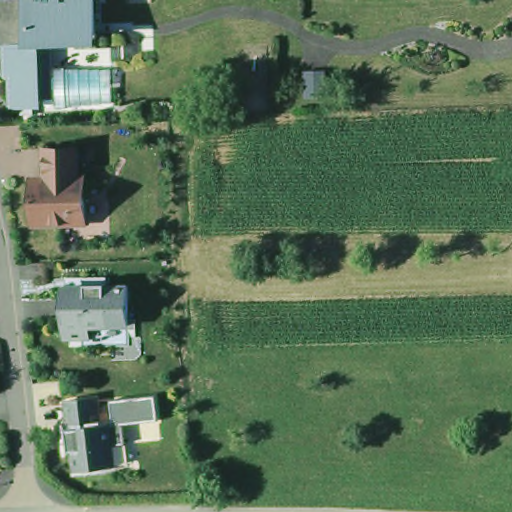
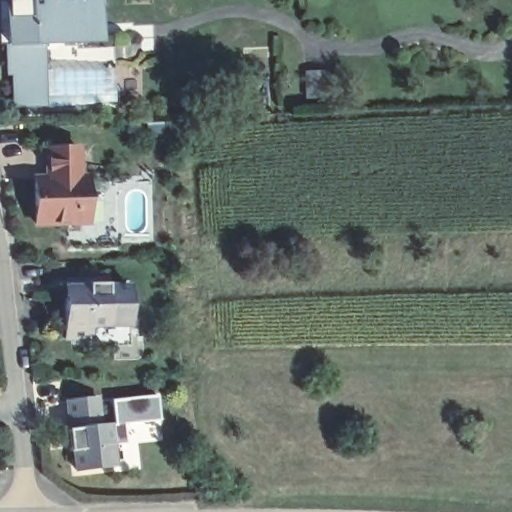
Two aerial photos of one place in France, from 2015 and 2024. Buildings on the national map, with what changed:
unchanged [(103,42),(45,44),(46,104),(15,105),(12,74),(7,73),(5,41),(0,41),(0,0),(101,0),(103,42)]
unchanged [(82,147),(83,180),(91,179),(93,224),(35,226),(34,180),(47,178),(47,148),(82,147)]
unchanged [(133,328),(91,334),(90,342),(62,343),(58,281),(130,279),(133,328)]
unchanged [(70,472),(62,398),(97,397),(99,425),(123,421),(127,446),(113,448),(115,468),(70,472)]

